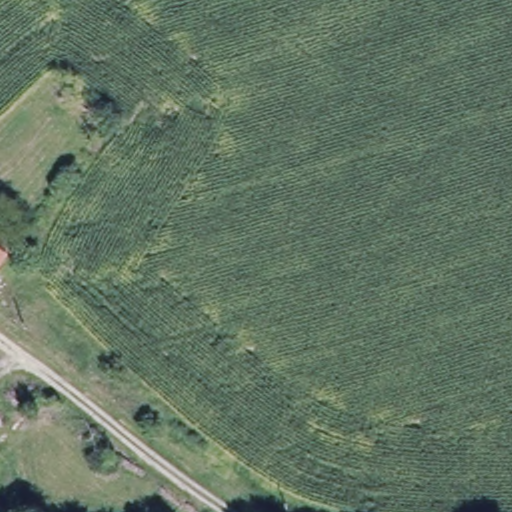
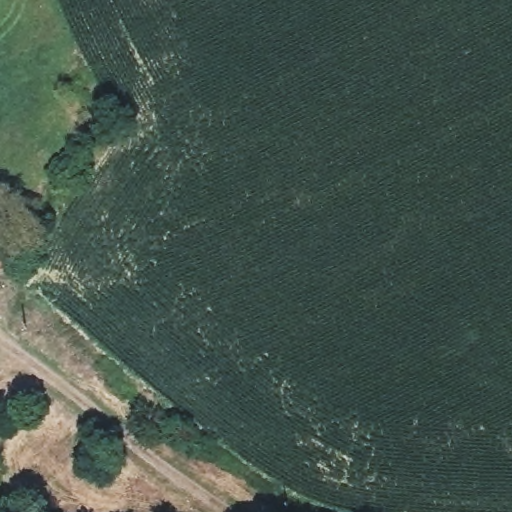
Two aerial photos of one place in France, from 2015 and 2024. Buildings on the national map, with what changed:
unchanged [(0,263),(9,270),(0,278),(0,263)]

